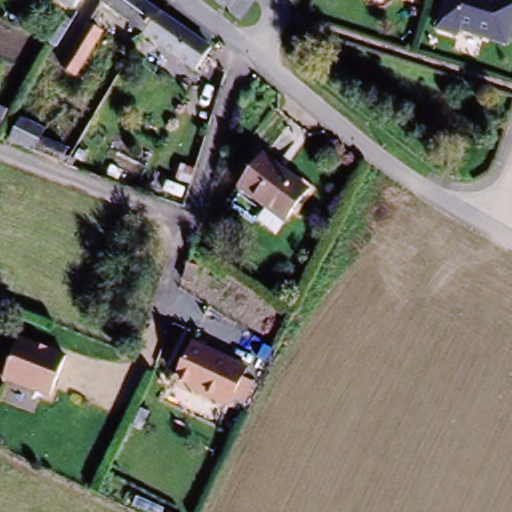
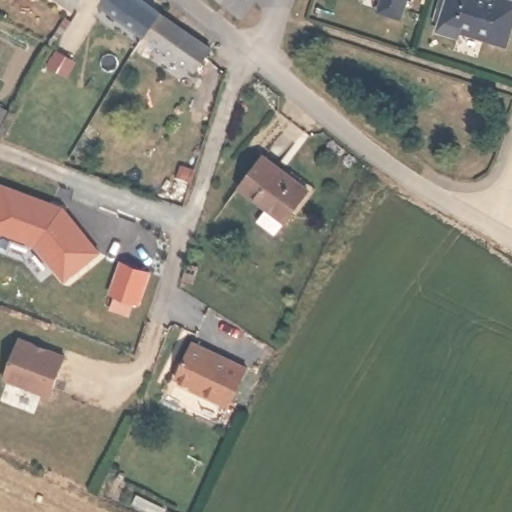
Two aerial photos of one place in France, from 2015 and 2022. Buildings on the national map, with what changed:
unchanged [(61,0),(74,0),(70,6),(61,0)]
unchanged [(142,32),(99,1),(100,0),(145,0),(159,9),(142,32)]
unchanged [(512,10),(501,42),(455,29),(453,33),(436,28),(445,0),(510,0),(512,1),(512,10)]
unchanged [(159,9),(210,46),(195,69),(142,32),(159,9)]
unchanged [(73,72),(60,62),(90,21),(102,31),(73,72)]
demolished [(33,139),(29,148),(57,159),(54,165),(61,168),(57,173),(1,152),(1,150),(10,130),(33,139)]
unchanged [(272,234),(256,222),(265,207),(240,187),(263,154),(306,188),(272,234)]
new [(5,184),(56,203),(55,205),(69,211),(103,251),(69,280),(59,267),(39,245),(0,231),(0,198),(5,184)]
new [(123,262),(151,272),(140,303),(112,292),(123,262)]
unchanged [(189,264),(197,268),(192,284),(184,281),(189,264)]
demolished [(11,273),(0,292),(0,268),(11,273)]
unchanged [(52,392),(7,380),(16,346),(17,340),(47,348),(62,353),(52,392)]
unchanged [(177,386),(194,347),(247,369),(230,408),(177,386)]

